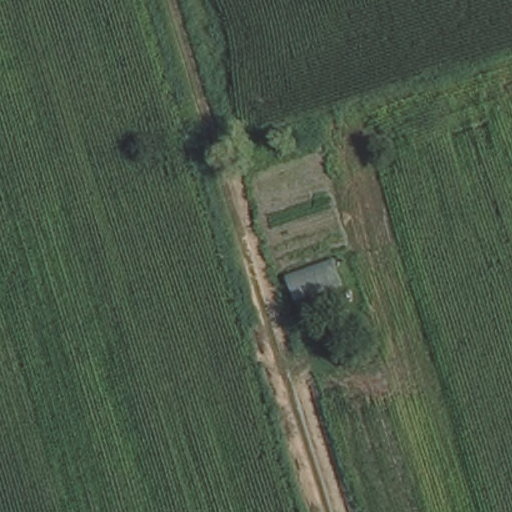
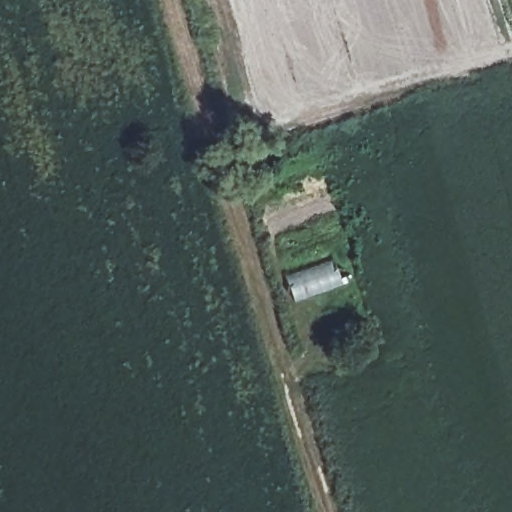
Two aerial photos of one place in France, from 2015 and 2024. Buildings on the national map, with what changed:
unchanged [(337,323),(323,329),(322,315),(335,309),(337,323)]

